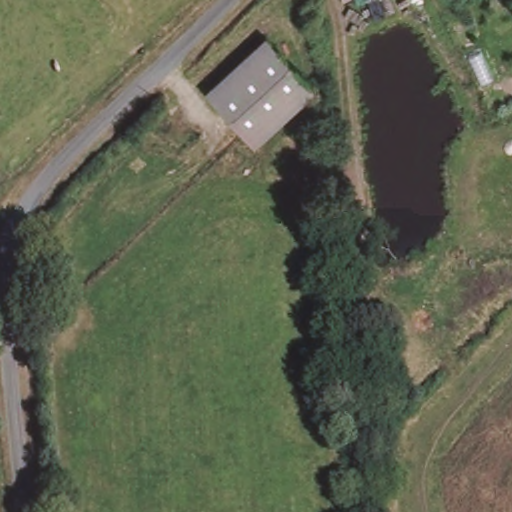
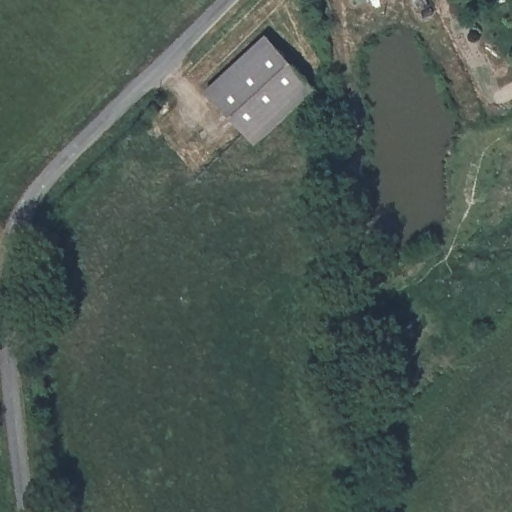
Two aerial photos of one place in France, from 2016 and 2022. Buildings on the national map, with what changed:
unchanged [(316,89),(256,145),(207,92),(267,36),(316,89)]

